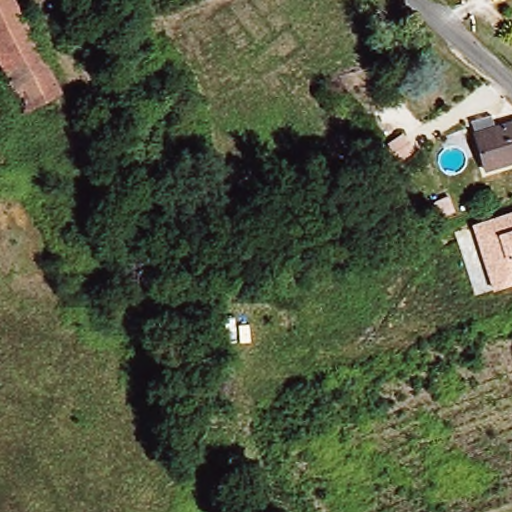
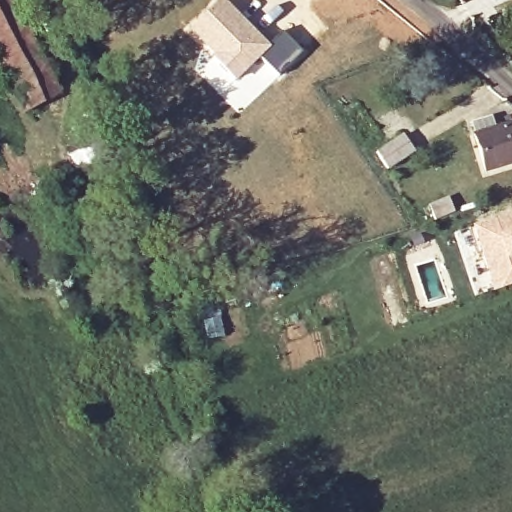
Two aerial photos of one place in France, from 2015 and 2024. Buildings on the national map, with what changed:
unchanged [(50,99),(12,114),(0,84),(0,0),(10,0),(50,99)]
new [(303,50),(278,74),(260,57),(235,81),(186,27),(216,0),(224,0),(267,42),(281,29),(303,50)]
unchanged [(420,116),(435,130),(409,147),(398,139),(420,116)]
unchanged [(484,173),(475,136),(470,125),(494,120),(498,130),(512,126),(512,165),(499,168),(484,173)]
unchanged [(490,179),(495,192),(475,197),(471,183),(490,179)]
unchanged [(512,212),(512,287),(493,293),(471,225),(512,212)]

